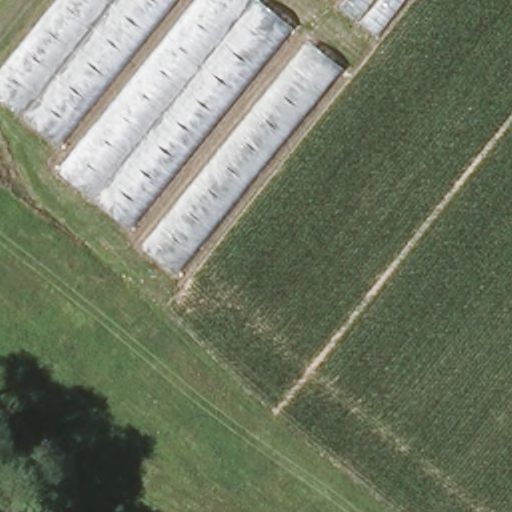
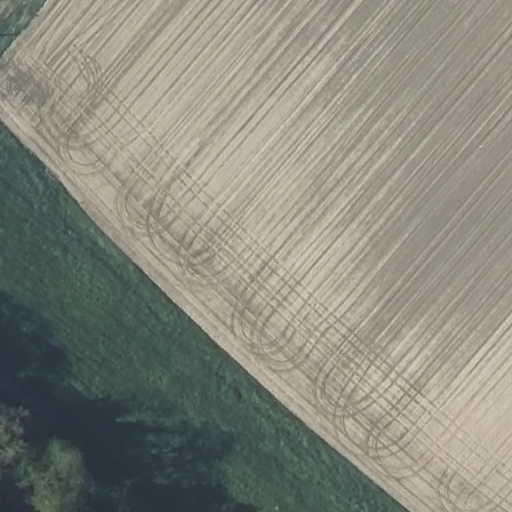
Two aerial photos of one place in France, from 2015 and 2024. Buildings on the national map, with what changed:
demolished [(175,277),(55,175),(68,160),(0,101),(0,76),(62,0),(258,0),(346,71),(175,277)]

